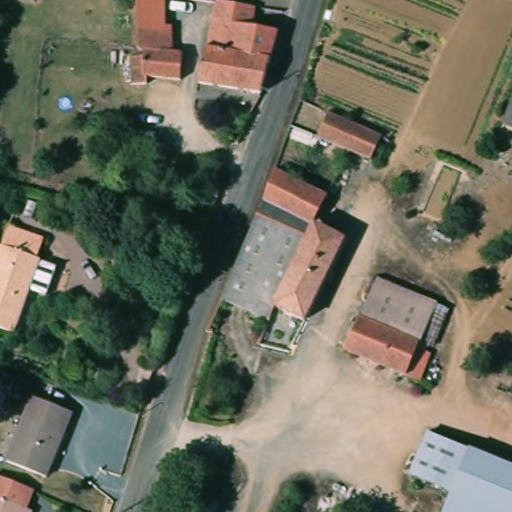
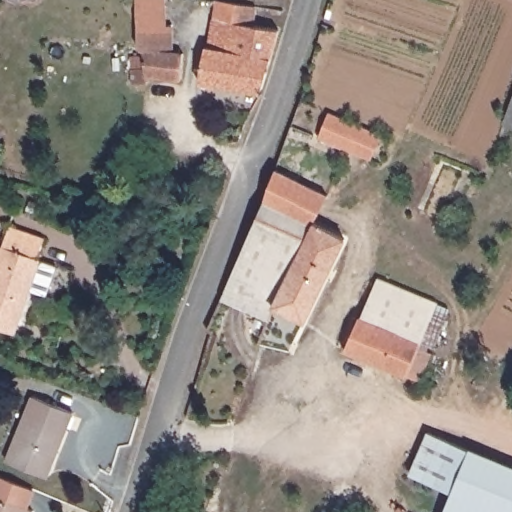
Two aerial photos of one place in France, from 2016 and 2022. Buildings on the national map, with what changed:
unchanged [(31,1),(28,0),(31,0),(31,1)]
unchanged [(129,0),(162,0),(162,31),(168,33),(167,53),(179,54),(176,81),(142,77),(142,84),(125,85),(126,56),(135,56),(135,46),(131,47),(129,0)]
unchanged [(198,47),(200,46),(207,19),(208,19),(210,2),(249,7),(245,27),(269,31),(251,93),(189,81),(198,47)]
unchanged [(512,78),(512,134),(493,125),(512,78)]
unchanged [(320,114),(374,135),(365,159),(311,137),(311,135),(320,114)]
unchanged [(319,197),(307,223),(304,226),(255,201),(266,171),(319,197)]
unchanged [(304,226),(307,223),(338,239),(297,318),(268,303),(259,321),(212,300),(255,201),(304,226)]
unchanged [(34,242),(27,262),(30,263),(3,337),(0,336),(0,232),(1,229),(34,242)]
unchanged [(371,290),(429,314),(420,335),(363,312),(371,290)]
unchanged [(420,335),(422,336),(420,342),(433,349),(422,376),(346,345),(360,311),(363,312),(420,335)]
unchanged [(67,415),(39,479),(0,461),(0,460),(28,398),(67,415)]
unchanged [(449,496),(408,475),(429,435),(470,455),(449,496)]
unchanged [(512,512),(440,512),(449,496),(470,455),(512,477),(512,512)]
unchanged [(29,500),(24,512),(0,512),(0,488),(29,500)]

